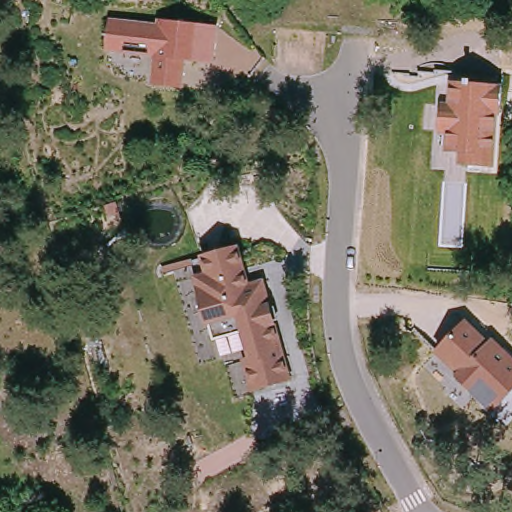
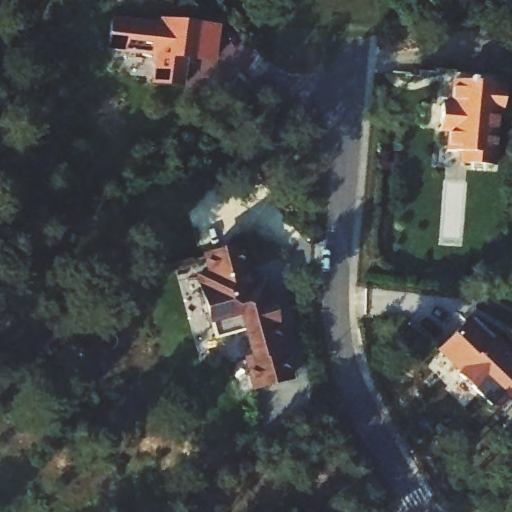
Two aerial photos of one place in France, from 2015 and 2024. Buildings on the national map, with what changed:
unchanged [(221,29),(216,65),(189,61),(183,91),(151,87),(156,56),(109,51),(111,19),(221,29)]
unchanged [(502,87),(494,168),(458,163),(459,150),(444,149),(444,136),(439,136),(442,102),(450,103),(452,81),(502,87)]
unchanged [(241,246),(249,285),(264,280),(294,378),(253,388),(241,354),(246,352),(245,348),(218,356),(194,277),(206,273),(201,256),(241,246)]
unchanged [(495,336),(512,355),(512,394),(501,406),(498,404),(494,409),(453,372),(454,370),(434,351),(466,320),(491,342),(495,336)]

